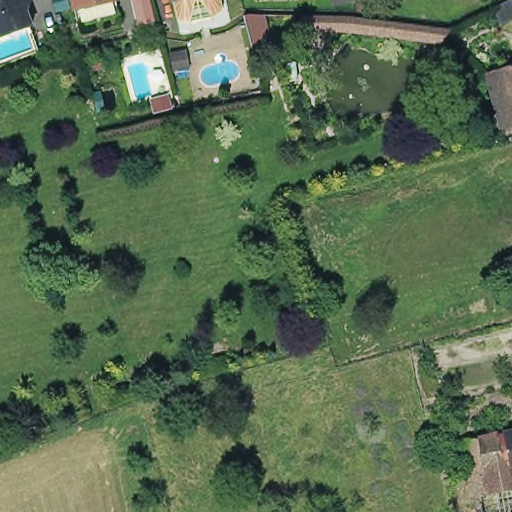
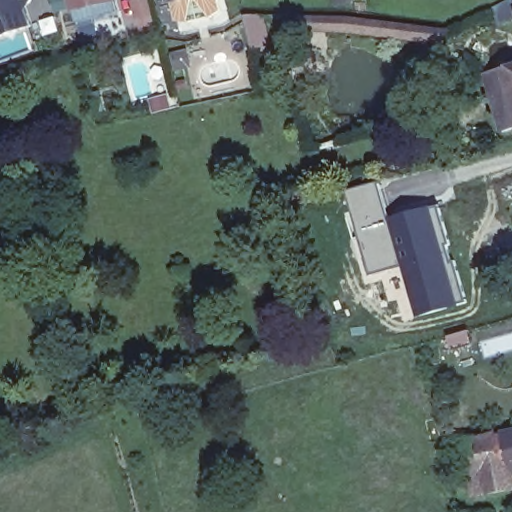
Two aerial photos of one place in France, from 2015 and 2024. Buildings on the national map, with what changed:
unchanged [(39,29),(3,43),(0,34),(0,0),(37,0),(32,10),(39,29)]
unchanged [(74,15),(69,0),(111,0),(113,5),(116,17),(77,27),(74,15)]
unchanged [(180,0),(214,0),(181,6),(180,0)]
new [(438,45),(319,31),(321,15),(449,29),(438,45)]
demolished [(512,33),(512,70),(496,75),(486,41),(512,33)]
unchanged [(507,111),(496,75),(512,70),(512,110),(507,111)]
new [(375,184),(386,219),(436,204),(469,308),(415,323),(398,269),(367,280),(335,193),(375,184)]
unchanged [(476,437),(512,432),(512,512),(487,512),(476,437)]

